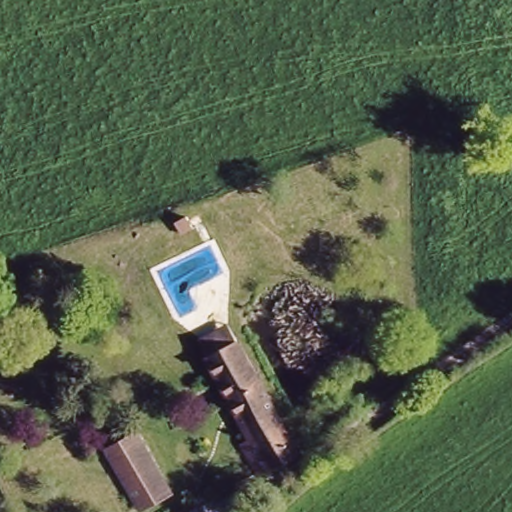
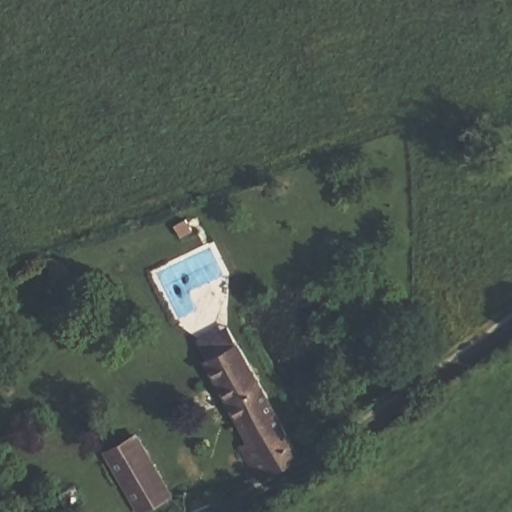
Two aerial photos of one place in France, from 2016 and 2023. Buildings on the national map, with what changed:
unchanged [(243,347),(302,449),(251,483),(233,453),(249,443),(208,362),(243,347)]
unchanged [(104,450),(137,430),(171,494),(138,512),(136,512),(104,450)]

